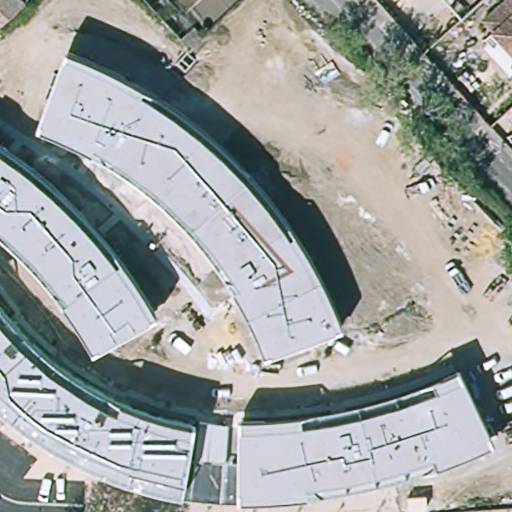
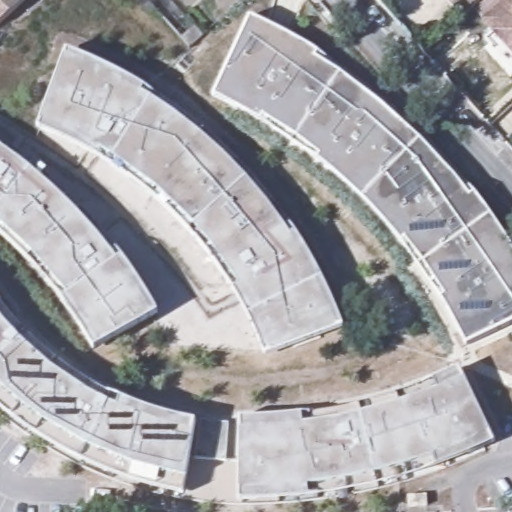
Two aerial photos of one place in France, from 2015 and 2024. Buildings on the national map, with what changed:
unchanged [(15,16),(0,29),(0,0),(24,0),(28,4),(15,16)]
unchanged [(512,0),(512,50),(484,20),(505,0),(512,0)]
new [(316,58),(338,72),(356,85),(384,106),(415,136),(442,163),(457,181),(469,195),(474,192),(490,214),(510,242),(512,247),(512,323),(465,345),(455,325),(440,297),(405,250),(382,221),(361,199),(319,161),(305,151),(267,125),(212,95),(248,15),(319,52),(316,58)]
unchanged [(101,65),(153,94),(214,136),(248,172),(293,234),(342,328),(267,356),(236,290),(195,230),(157,192),(108,159),(39,129),(65,55),(101,65)]
unchanged [(43,176),(83,216),(120,257),(157,315),(93,350),(65,302),(28,263),(0,237),(0,145),(43,176)]
unchanged [(224,460),(189,449),(185,477),(182,497),(123,481),(61,450),(7,413),(0,407),(0,307),(11,321),(46,355),(78,380),(122,403),(194,422),(227,425),(224,460)]
unchanged [(493,441),(437,466),(373,485),(306,496),(238,500),(240,420),(303,415),(361,405),(434,380),(458,369),(493,441)]

